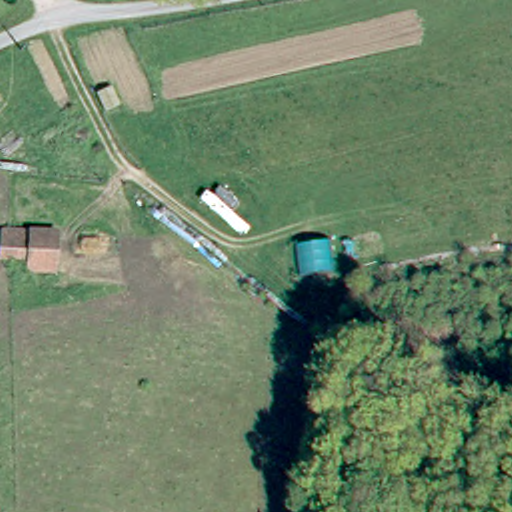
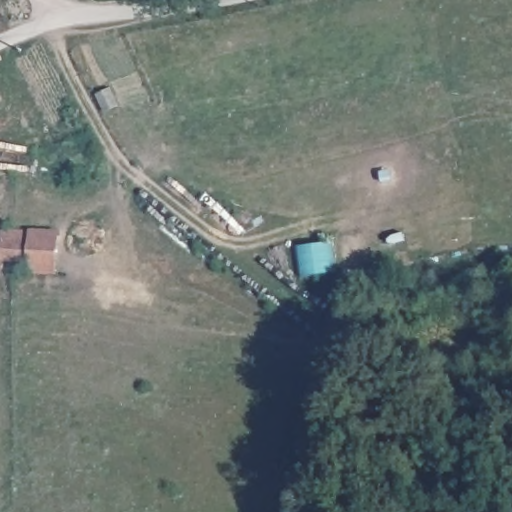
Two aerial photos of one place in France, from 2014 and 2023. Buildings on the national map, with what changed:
unchanged [(28,271),(22,262),(0,261),(0,230),(28,231),(37,226),(60,230),(58,272),(28,271)]

